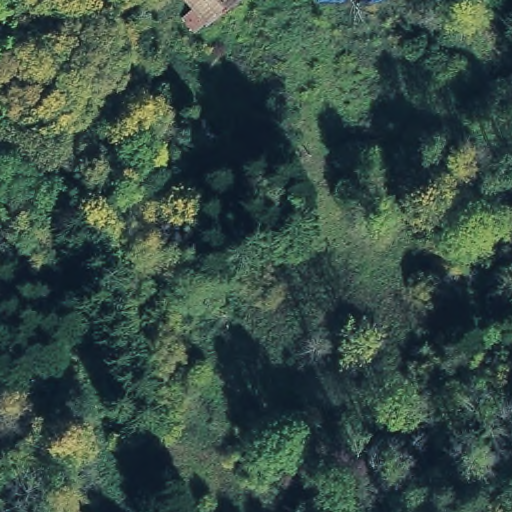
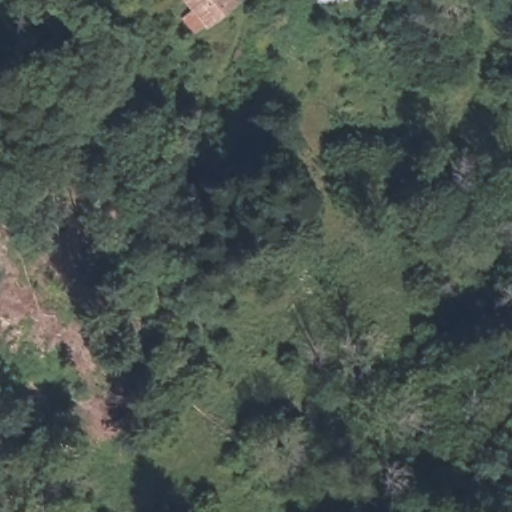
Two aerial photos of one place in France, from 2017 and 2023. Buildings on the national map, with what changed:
unchanged [(210,22),(187,0),(231,0),(210,22)]

